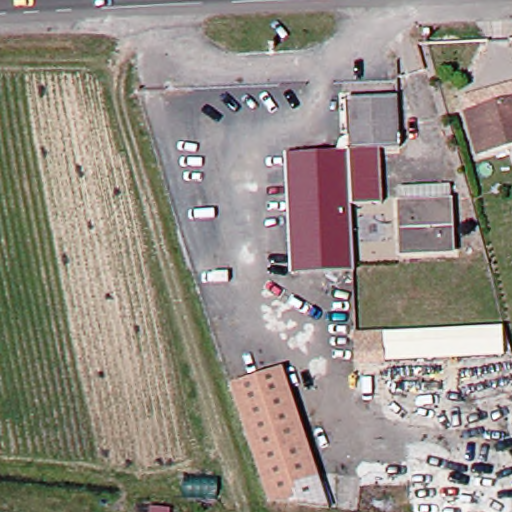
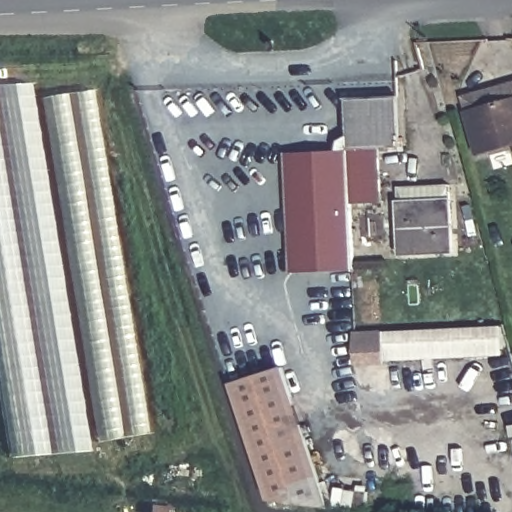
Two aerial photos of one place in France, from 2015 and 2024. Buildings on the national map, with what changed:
new [(11,457),(0,388),(0,85),(31,82),(91,447),(11,457)]
new [(98,442),(43,96),(94,89),(148,434),(98,442)]
unchanged [(351,204),(354,270),(290,273),(285,152),(338,150),(339,140),(348,137),(347,98),(398,96),(400,148),(381,149),(349,149),(351,204)]
unchanged [(512,148),(473,159),(462,119),(512,104),(512,149),(512,148)]
unchanged [(383,203),(351,204),(349,149),(381,149),(383,203)]
unchanged [(393,193),(445,190),(448,256),(397,259),(393,193)]
unchanged [(357,331),(506,324),(512,347),(512,353),(387,359),(387,360),(356,362),(354,331),(357,331)]
unchanged [(322,506),(264,499),(232,382),(284,368),(322,506)]

